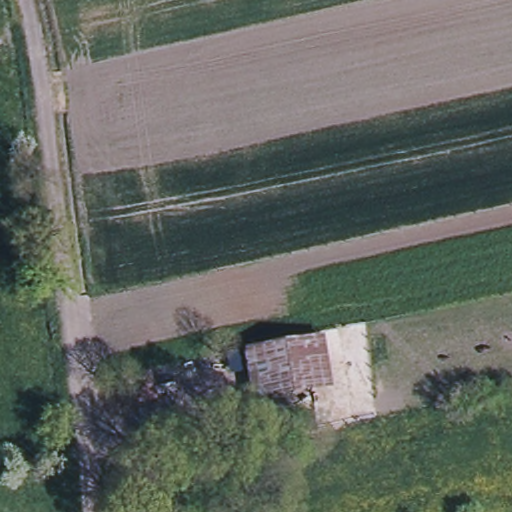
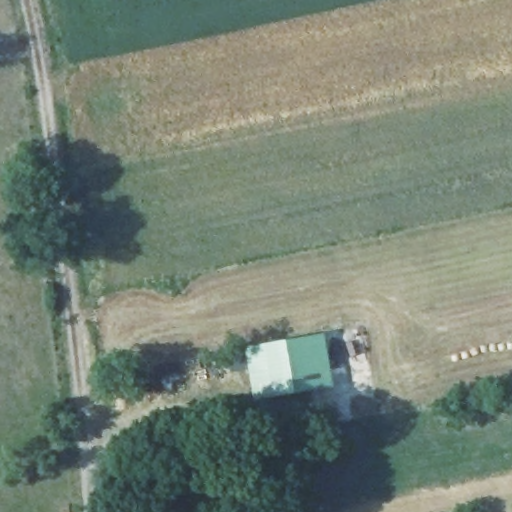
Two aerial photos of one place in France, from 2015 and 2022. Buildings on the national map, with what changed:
unchanged [(322,333),(332,383),(255,396),(245,346),(322,333)]

